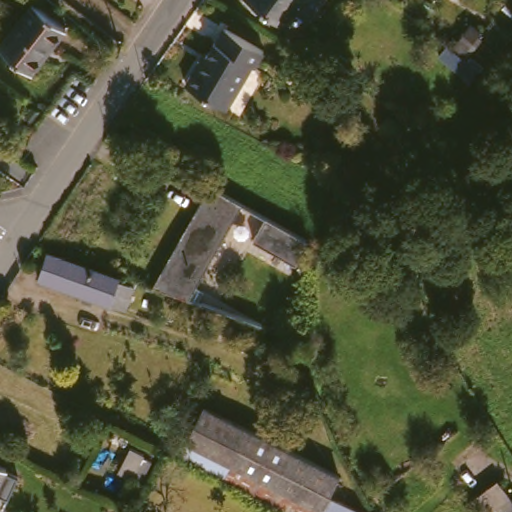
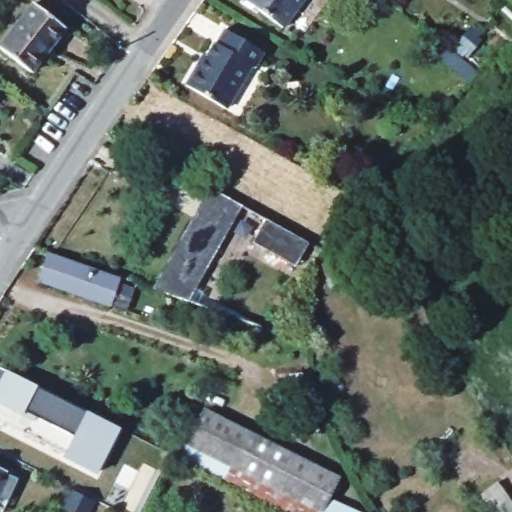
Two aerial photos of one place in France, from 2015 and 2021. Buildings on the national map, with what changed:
unchanged [(288,24),(252,0),(305,0),(288,24)]
unchanged [(68,28),(33,71),(0,46),(36,1),(68,28)]
unchanged [(199,62),(204,65),(217,42),(218,43),(228,27),(269,52),(260,67),(257,65),(230,109),(187,83),(199,62)]
unchanged [(208,185),(223,194),(239,202),(193,286),(200,290),(202,290),(202,291),(196,301),(151,286),(155,278),(208,185)]
unchanged [(313,241),(299,264),(256,240),(269,217),(313,241)]
unchanged [(106,272),(132,280),(141,282),(134,310),(44,287),(51,258),(106,272)]
new [(62,458),(73,436),(24,412),(19,419),(0,408),(0,380),(4,372),(37,387),(119,430),(96,475),(62,458)]
unchanged [(234,422),(290,452),(343,478),(333,500),(353,511),(354,511),(354,512),(291,512),(183,455),(207,408),(234,422)]
demolished [(129,452),(139,458),(127,481),(114,474),(126,451),(129,452)]
unchanged [(0,497),(0,466),(12,472),(0,497)]
unchanged [(504,482),(512,496),(512,506),(504,512),(491,512),(482,497),(504,482)]

